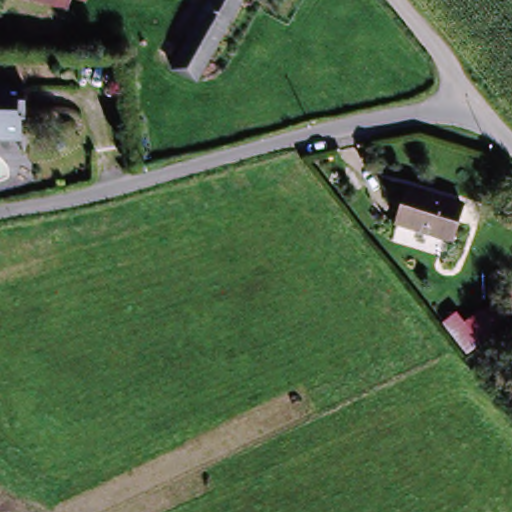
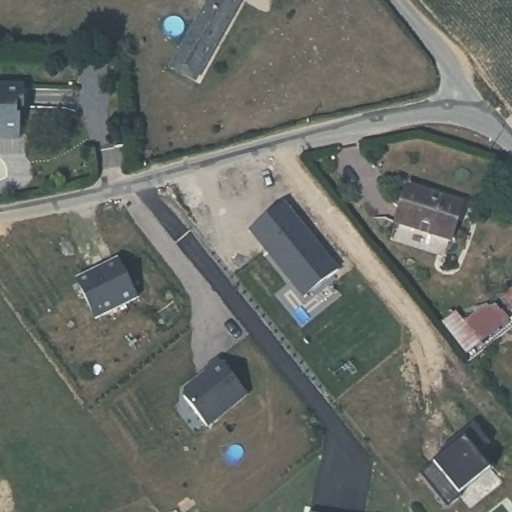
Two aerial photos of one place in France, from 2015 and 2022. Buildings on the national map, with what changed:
demolished [(60,4),(46,0),(62,0),(60,4)]
unchanged [(179,57),(189,38),(208,0),(245,0),(219,53),(208,74),(179,57)]
unchanged [(25,118),(25,138),(0,139),(0,86),(28,84),(29,105),(29,118),(25,118)]
unchanged [(409,184),(462,201),(452,238),(397,220),(409,184)]
new [(283,205),(337,273),(305,299),(250,232),(283,205)]
new [(117,261),(136,300),(95,320),(76,281),(117,261)]
unchanged [(463,304),(487,333),(475,343),(452,314),(463,304)]
new [(185,393),(207,375),(205,373),(218,362),(246,397),(207,429),(184,400),(185,393)]
new [(490,441),(476,453),(489,468),(459,493),(447,506),(420,474),(434,463),(446,453),(442,448),(475,422),(490,441)]

